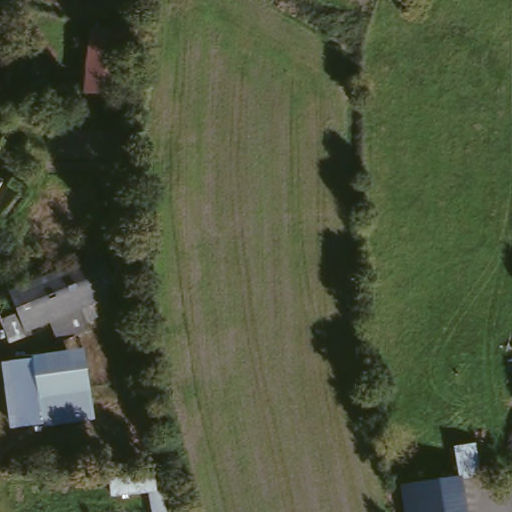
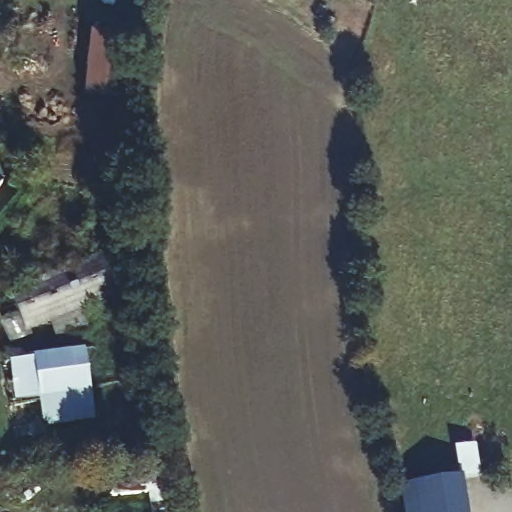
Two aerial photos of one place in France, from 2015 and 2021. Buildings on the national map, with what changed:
unchanged [(83,92),(91,33),(127,37),(119,96),(83,92)]
unchanged [(71,338),(63,313),(33,323),(19,284),(103,254),(119,294),(92,304),(99,328),(71,338)]
unchanged [(25,365),(101,351),(113,415),(35,428),(25,365)]
unchanged [(25,365),(35,428),(6,433),(0,394),(0,370),(25,365)]
unchanged [(489,461),(462,463),(459,439),(489,437),(489,461)]
unchanged [(410,512),(406,489),(467,475),(474,512),(410,512)]

